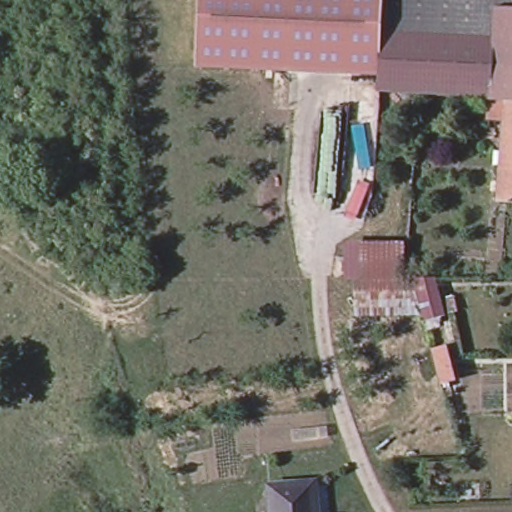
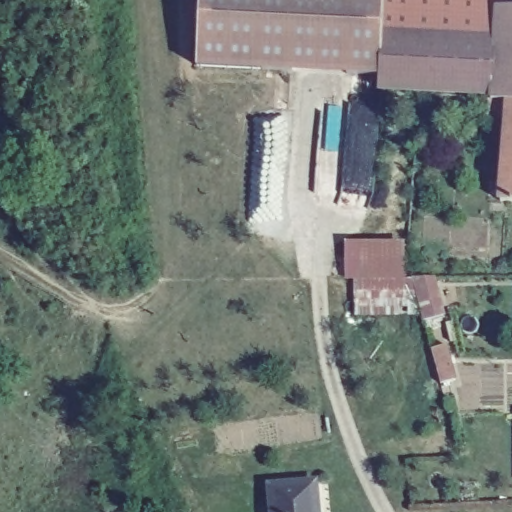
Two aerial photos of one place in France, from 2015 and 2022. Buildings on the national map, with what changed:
unchanged [(385,0),(382,75),(195,69),(199,0),(385,0)]
unchanged [(495,100),(492,97),(414,92),(381,90),(382,75),(385,0),(512,0),(512,101),(510,101),(495,100)]
unchanged [(510,101),(512,101),(512,205),(502,204),(510,101)]
unchanged [(405,280),(412,280),(411,316),(355,317),(355,241),(403,242),(405,280)]
unchanged [(447,348),(456,381),(442,385),(433,351),(447,348)]
unchanged [(272,490),(317,485),(320,512),(275,512),(272,490)]

